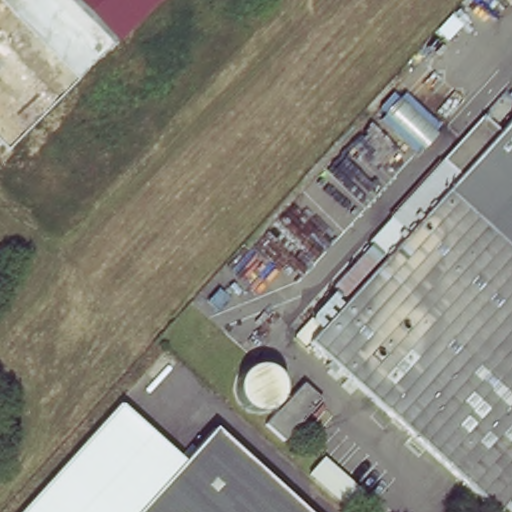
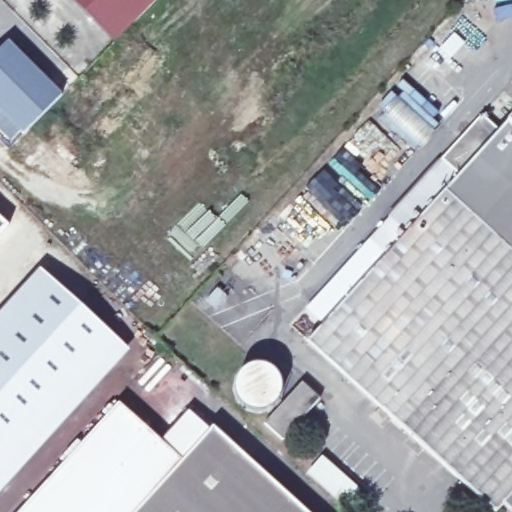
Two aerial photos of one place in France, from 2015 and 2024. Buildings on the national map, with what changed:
unchanged [(116,42),(75,0),(159,0),(116,42)]
new [(62,95),(21,134),(0,112),(0,51),(9,42),(62,95)]
unchanged [(495,135),(406,232),(386,214),(483,107),(508,120),(495,135)]
unchanged [(508,120),(512,116),(512,492),(505,500),(497,509),(311,339),(368,276),(406,232),(508,120)]
new [(8,223),(0,231),(0,216),(8,223)]
unchanged [(298,326),(354,263),(368,276),(311,339),(298,326)]
new [(41,270),(130,351),(0,493),(0,314),(41,270)]
unchanged [(319,399),(283,437),(263,420),(299,381),(319,399)]
unchanged [(20,512),(120,402),(183,458),(133,512),(20,512)]
unchanged [(306,512),(133,512),(213,425),(306,512)]
unchanged [(360,494),(347,508),(311,476),(324,462),(360,494)]
unchanged [(505,500),(512,492),(512,507),(505,500)]

